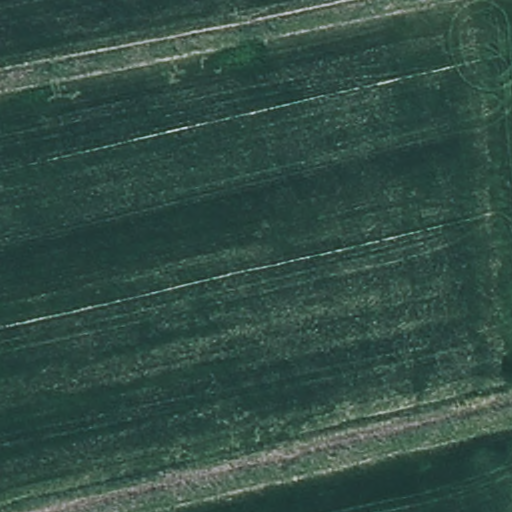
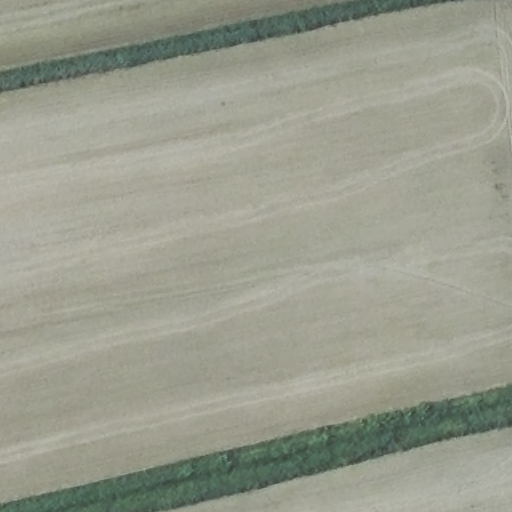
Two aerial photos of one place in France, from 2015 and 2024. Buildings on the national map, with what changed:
[]

